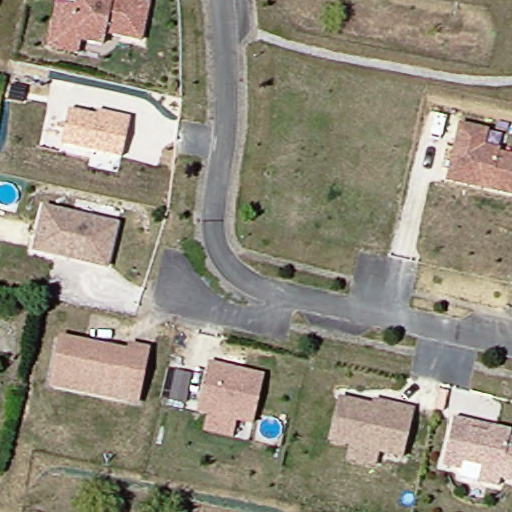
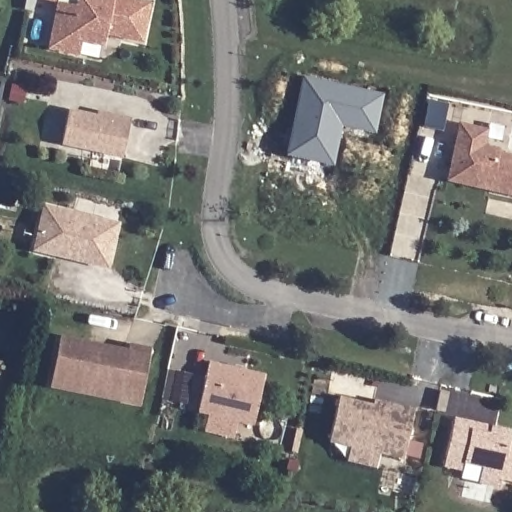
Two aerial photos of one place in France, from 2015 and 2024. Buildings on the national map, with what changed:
unchanged [(79,0),(98,5),(100,0),(104,0),(110,1),(146,11),(137,48),(100,39),(97,50),(76,45),(72,58),(43,51),(50,26),(57,0),(79,0)]
new [(374,136),(340,128),(331,168),(283,157),(302,76),(383,95),(374,136)]
new [(443,131),(425,126),(431,100),(450,104),(443,131)]
unchanged [(61,145),(67,113),(128,124),(121,158),(61,145)]
unchanged [(450,170),(460,124),(488,131),(485,147),(500,150),(500,154),(512,157),(512,197),(490,192),(447,182),(450,170)]
unchanged [(118,223),(107,266),(32,248),(43,204),(118,223)]
unchanged [(115,399),(45,384),(55,341),(123,356),(125,347),(145,351),(138,383),(133,403),(115,399)]
unchanged [(205,427),(210,410),(197,407),(209,359),(266,373),(255,421),(236,416),(232,433),(205,427)]
unchanged [(177,367),(191,370),(185,400),(170,396),(177,367)]
unchanged [(347,459),(350,444),(328,439),(338,397),(372,405),(373,399),(414,408),(413,414),(403,456),(378,450),(375,465),(347,459)]
unchanged [(471,478),(475,463),(462,461),(460,468),(441,464),(452,415),(471,420),(488,424),(510,428),(507,435),(512,437),(512,480),(498,476),(496,484),(471,478)]

